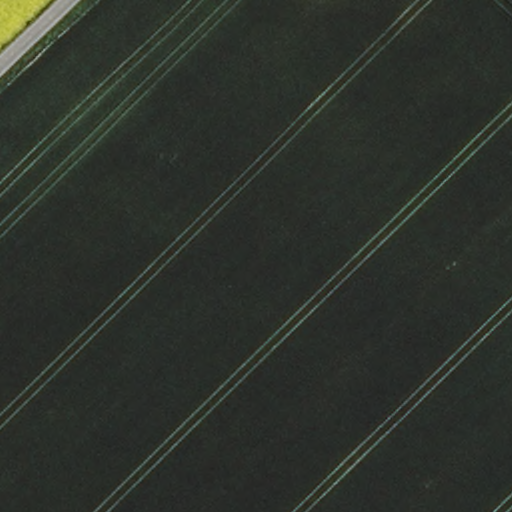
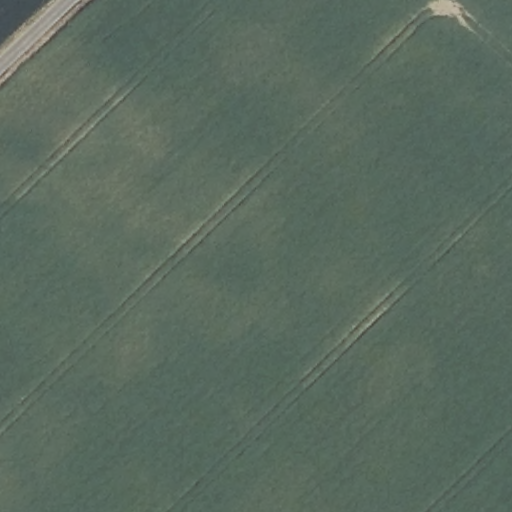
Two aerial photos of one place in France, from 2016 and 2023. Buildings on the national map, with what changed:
[]

